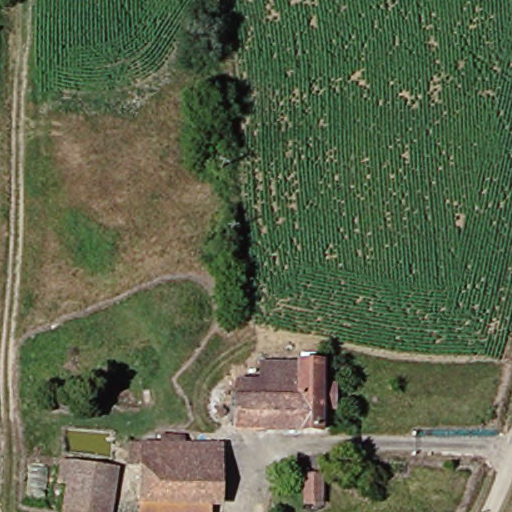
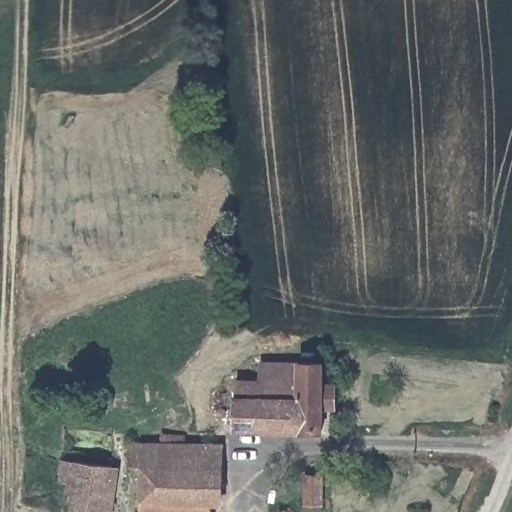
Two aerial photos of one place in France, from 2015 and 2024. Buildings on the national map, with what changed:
unchanged [(241,432),(243,380),(267,380),(267,362),(326,362),(326,387),(338,387),(338,406),(326,406),(326,432),(241,432)]
unchanged [(139,481),(134,481),(134,470),(128,470),(130,441),(200,444),(197,506),(211,506),(211,512),(138,512),(138,507),(139,481)]
unchanged [(200,444),(228,446),(225,507),(211,506),(197,506),(200,444)]
unchanged [(66,477),(69,458),(111,465),(122,466),(120,481),(118,495),(73,490),(75,477),(66,477)]
unchanged [(334,481),(333,503),(319,503),(319,481),(334,481)]
unchanged [(118,495),(116,512),(70,512),(73,490),(118,495)]

